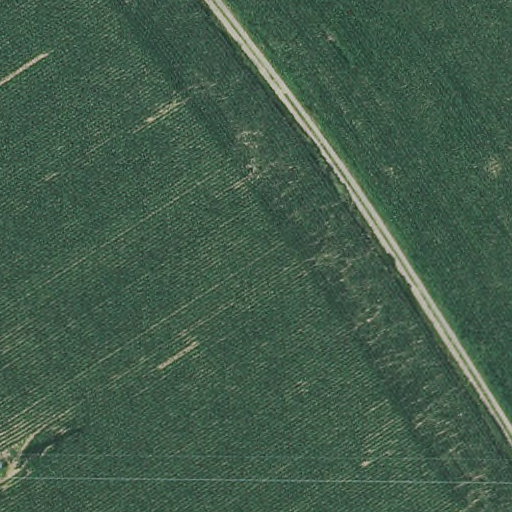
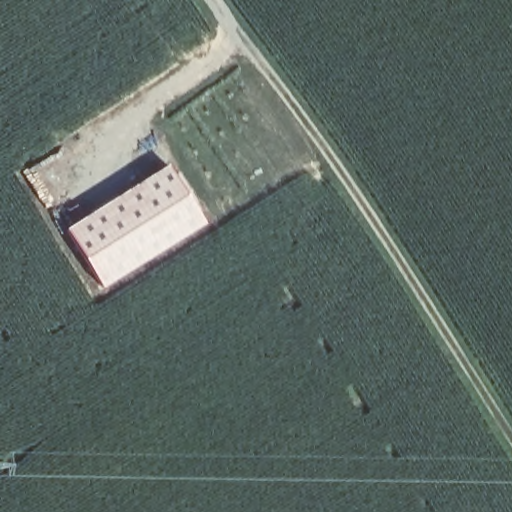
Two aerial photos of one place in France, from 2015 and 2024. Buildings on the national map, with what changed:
new [(103,288),(66,230),(169,164),(206,224),(103,288)]

